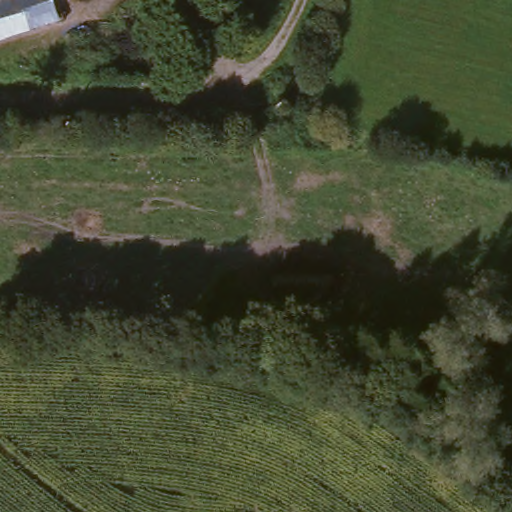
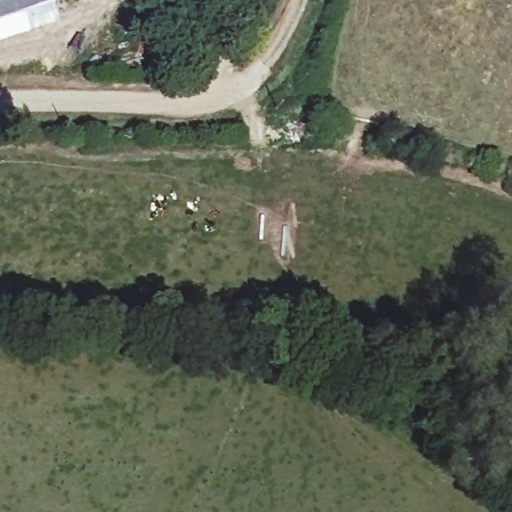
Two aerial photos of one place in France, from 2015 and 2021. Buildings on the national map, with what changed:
unchanged [(4,0),(0,1),(0,0),(4,0)]

